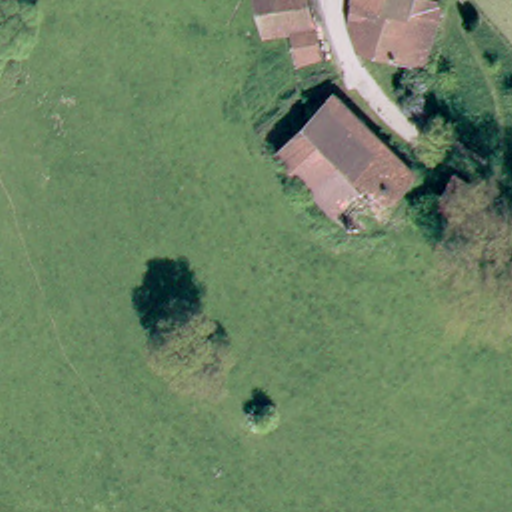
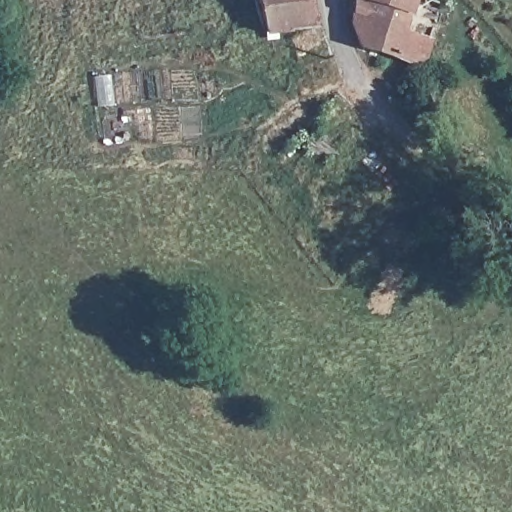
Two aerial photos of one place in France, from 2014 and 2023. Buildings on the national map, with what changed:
unchanged [(306,0),(311,19),(323,51),(294,60),(283,27),(258,32),(257,29),(251,0),(306,0)]
unchanged [(421,68),(356,46),(350,28),(352,0),(442,0),(439,11),(421,68)]
demolished [(414,172),(385,205),(358,234),(355,232),(336,212),(333,210),(275,154),(311,117),(333,96),(414,172)]

